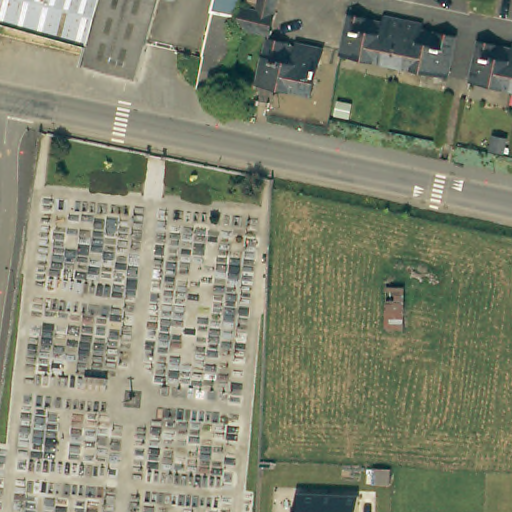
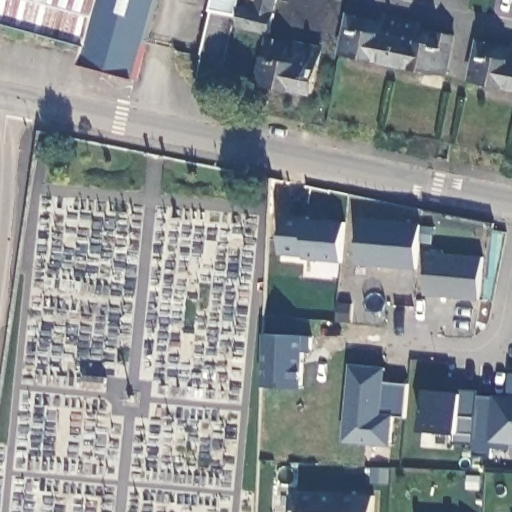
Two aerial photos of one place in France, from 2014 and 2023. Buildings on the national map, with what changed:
unchanged [(88,61),(93,44),(0,19),(0,0),(160,0),(139,75),(88,61)]
unchanged [(199,92),(206,59),(203,58),(217,0),(240,0),(217,96),(199,92)]
unchanged [(260,3),(261,0),(278,0),(271,34),(255,31),(241,28),(249,0),(260,3)]
unchanged [(380,24),(382,18),(416,25),(415,30),(450,39),(441,77),(339,55),(348,16),(380,24)]
unchanged [(512,87),(472,78),(480,39),(512,46),(512,87)]
unchanged [(284,62),(295,64),(299,46),(324,52),(313,98),(257,86),(269,40),(288,44),(284,62)]
new [(343,261),(303,258),(304,254),(280,253),(283,212),(310,215),(311,218),(345,220),(343,261)]
new [(420,270),(361,265),(365,220),(423,224),(420,270)]
new [(386,381),(410,383),(406,416),(396,416),(393,447),(345,443),(351,365),(386,367),(386,381)]
new [(492,457),(473,455),(475,443),(455,442),(456,433),(422,430),(425,389),(460,392),(460,387),(479,389),(479,393),(509,396),(510,372),(512,373),(512,449),(494,448),(492,457)]
unchanged [(295,511),(300,511),(300,489),(361,492),(361,512),(294,512),(295,511)]

